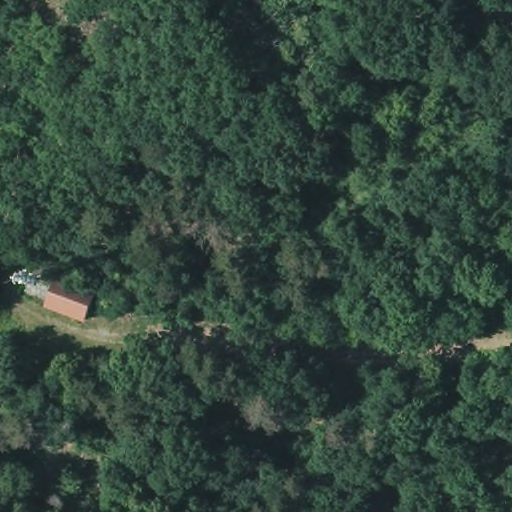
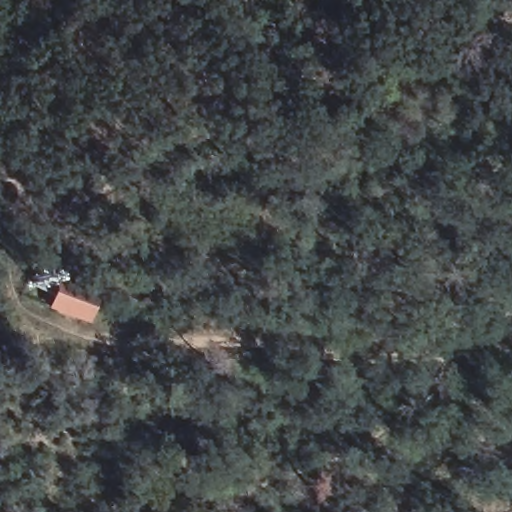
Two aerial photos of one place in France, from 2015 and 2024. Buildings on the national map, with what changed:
unchanged [(65,279),(101,292),(90,319),(53,310),(65,279)]

